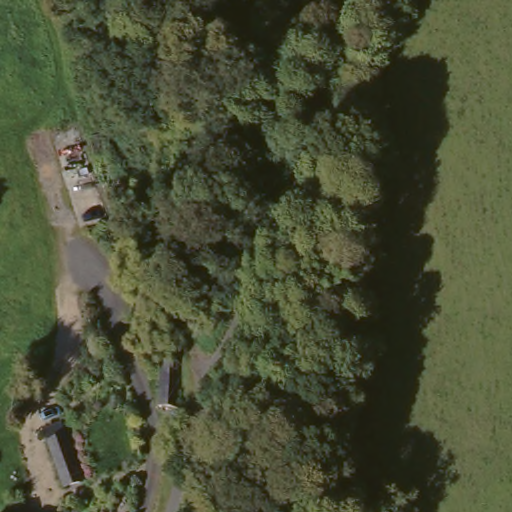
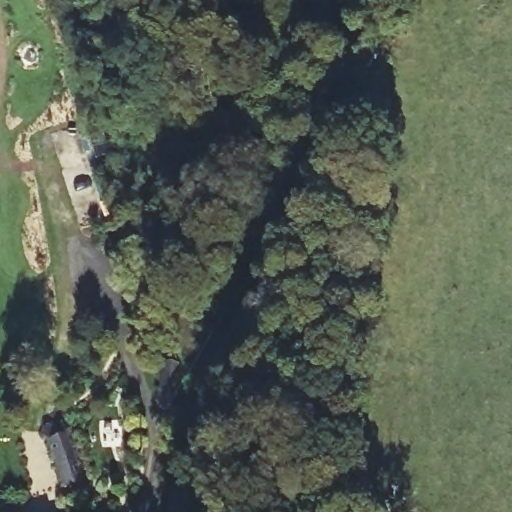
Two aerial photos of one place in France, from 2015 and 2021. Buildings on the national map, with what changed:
unchanged [(57,497),(49,468),(40,437),(63,431),(72,462),(80,492),(57,497)]

